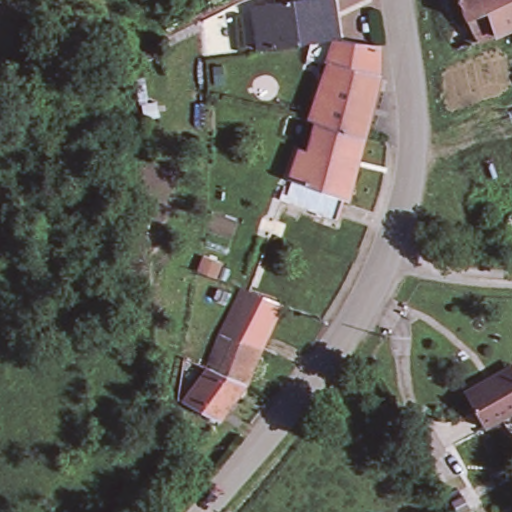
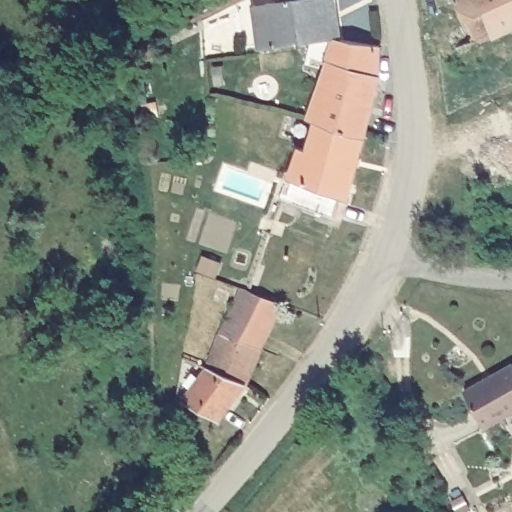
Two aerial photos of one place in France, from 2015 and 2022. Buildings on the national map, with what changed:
unchanged [(337,36),(315,40),(262,47),(261,29),(259,2),(271,1),(277,0),(336,0),(340,35),(381,39),(378,76),(362,138),(311,122),(331,66),(330,65),(331,62),(329,61),(337,36)]
unchanged [(496,36),(494,37),(471,47),(463,27),(461,28),(448,0),(512,0),(512,29),(498,36),(496,36)]
unchanged [(362,138),(352,165),(302,150),(311,123),(311,122),(362,138)]
unchanged [(302,150),(352,165),(339,203),(337,202),(287,181),(284,180),(296,147),(302,150)]
unchanged [(287,181),(337,202),(329,222),(278,201),(287,181)]
unchanged [(283,309),(259,352),(222,331),(249,285),(283,309)]
unchanged [(259,352),(240,386),(203,364),(222,331),(259,352)]
unchanged [(512,361),(512,407),(487,423),(465,389),(494,370),(495,372),(512,361)]
unchanged [(240,386),(215,422),(179,399),(203,364),(240,386)]

